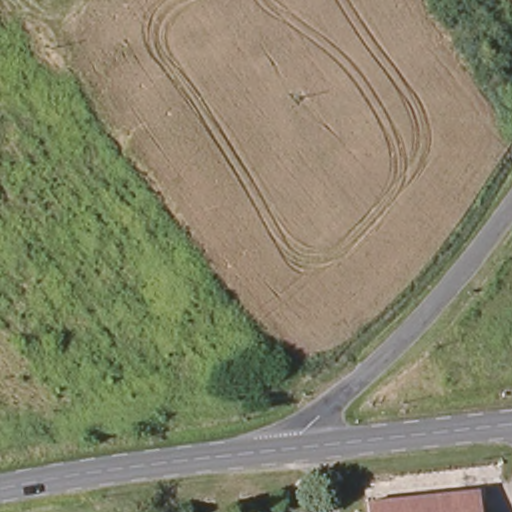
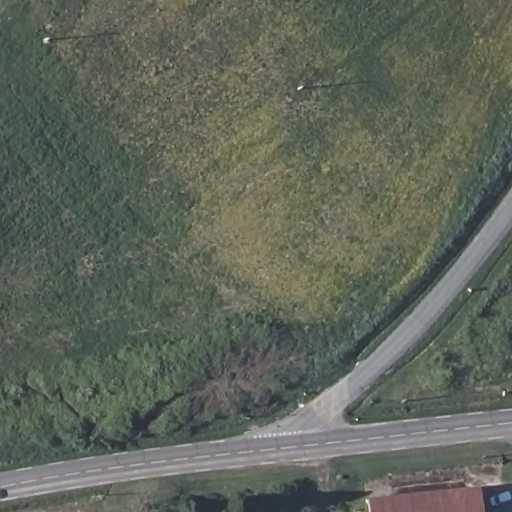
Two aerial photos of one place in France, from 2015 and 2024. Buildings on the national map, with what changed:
unchanged [(370,504),(479,494),(480,512),(370,512),(370,504)]

